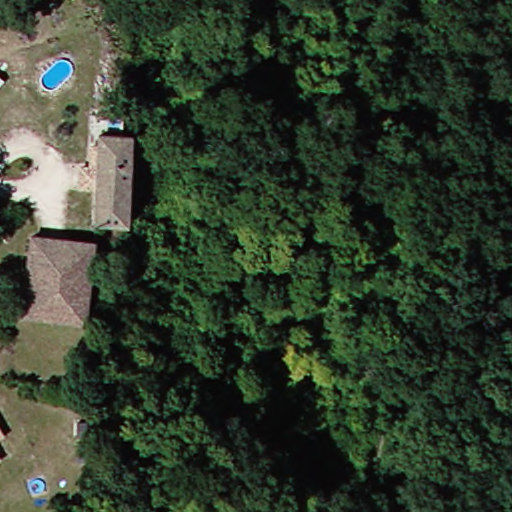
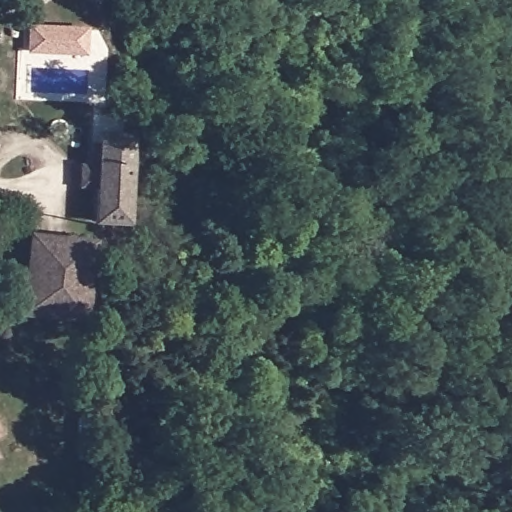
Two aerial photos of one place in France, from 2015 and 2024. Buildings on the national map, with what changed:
new [(28,24),(87,27),(86,56),(27,54),(28,24)]
unchanged [(89,186),(90,167),(100,168),(101,146),(107,146),(109,135),(132,135),(141,141),(138,226),(108,225),(102,225),(105,189),(89,186)]
unchanged [(65,316),(66,301),(39,298),(40,260),(17,258),(17,232),(101,240),(97,318),(65,316)]
unchanged [(0,443),(0,415),(11,437),(0,443)]

